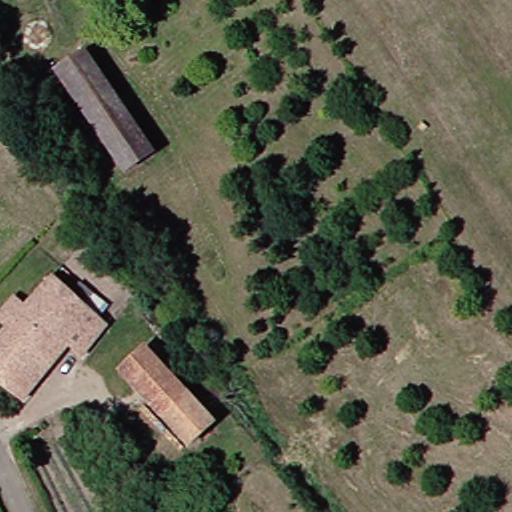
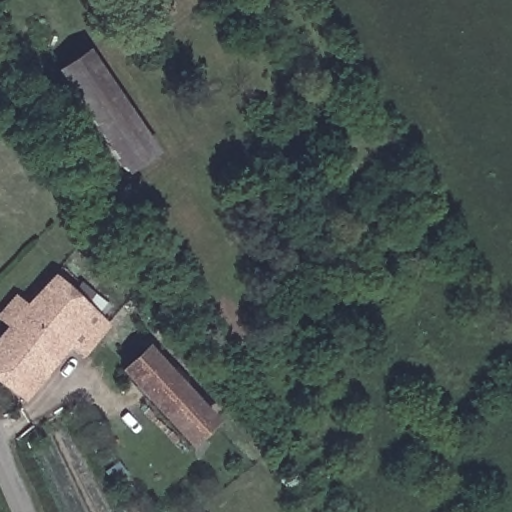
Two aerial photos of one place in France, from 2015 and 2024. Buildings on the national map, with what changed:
unchanged [(160,152),(130,171),(65,71),(92,51),(160,152)]
unchanged [(99,315),(111,325),(91,350),(80,340),(25,401),(0,380),(0,341),(56,279),(99,315)]
unchanged [(218,423),(194,445),(125,373),(149,349),(218,423)]

